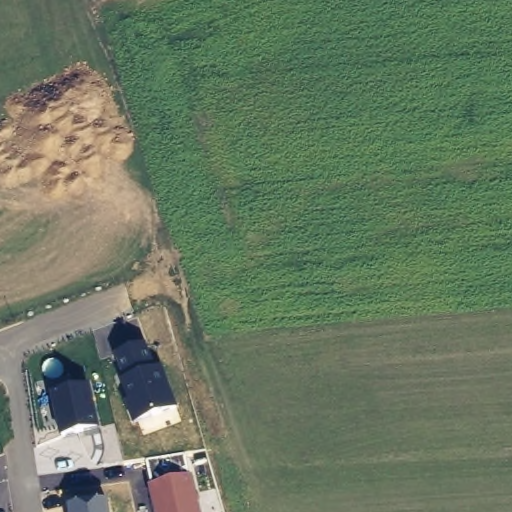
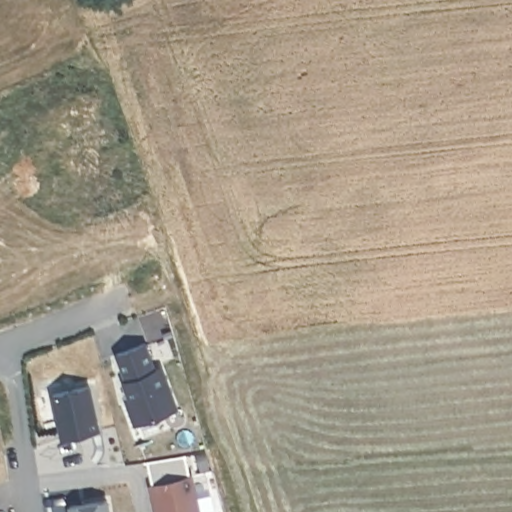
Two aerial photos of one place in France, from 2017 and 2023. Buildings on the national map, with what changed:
unchanged [(145,341),(154,368),(162,365),(178,408),(133,424),(119,379),(122,378),(113,353),(145,341)]
unchanged [(99,427),(59,438),(50,393),(89,384),(99,427)]
unchanged [(152,484),(146,462),(183,455),(189,476),(193,476),(201,512),(154,512),(147,486),(152,484)]
unchanged [(108,499),(110,512),(68,512),(67,506),(108,499)]

